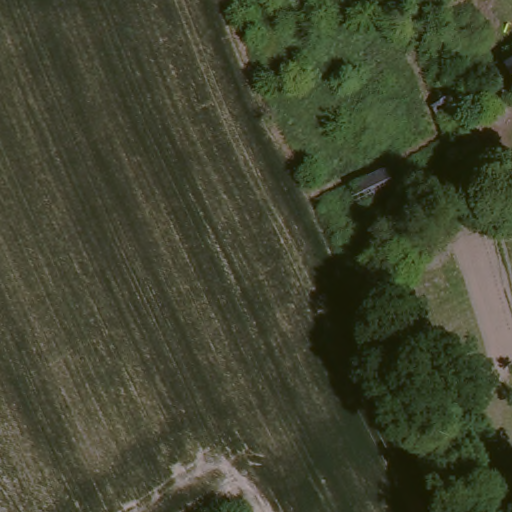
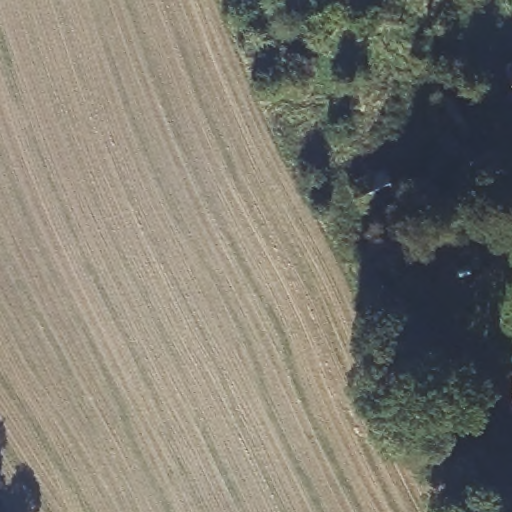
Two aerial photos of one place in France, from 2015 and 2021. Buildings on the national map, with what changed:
unchanged [(497,75),(512,66),(512,100),(497,75)]
unchanged [(432,112),(446,104),(450,101),(467,129),(480,151),(462,162),(432,112)]
unchanged [(350,192),(383,173),(394,193),(360,212),(350,192)]

